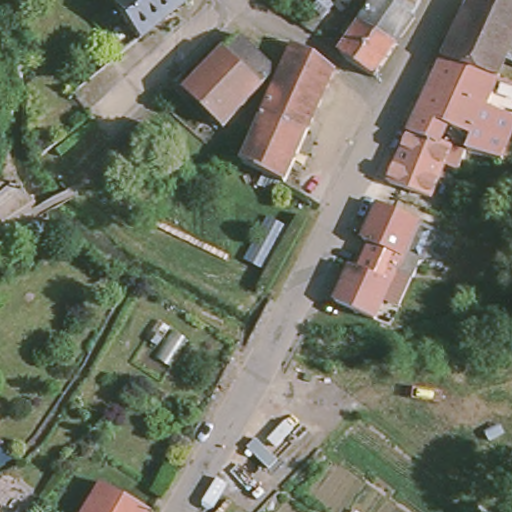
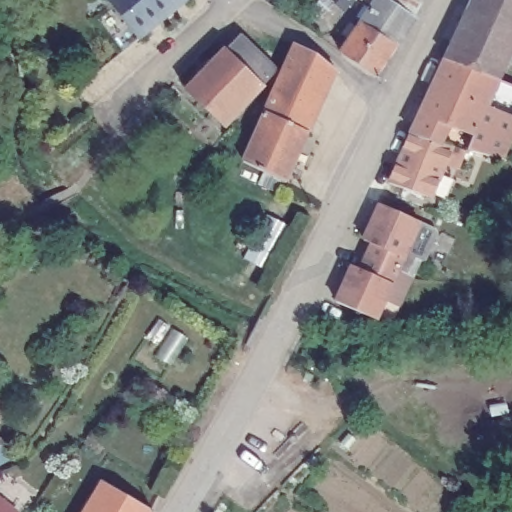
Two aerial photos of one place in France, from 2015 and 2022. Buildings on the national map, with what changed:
unchanged [(108,0),(188,0),(139,39),(108,0)]
unchanged [(339,0),(328,10),(319,1),(320,0),(339,0)]
unchanged [(345,0),(354,0),(350,4),(345,0)]
unchanged [(378,0),(424,0),(418,10),(421,13),(406,34),(370,11),(378,0)]
unchanged [(512,0),(512,65),(507,63),(500,79),(445,58),(472,0),(512,0)]
unchanged [(348,29),(355,18),(362,22),(370,11),(406,34),(381,73),(352,55),(345,47),(355,34),(348,29)]
unchanged [(245,40),(281,77),(228,132),(191,95),(243,41),(245,40)]
unchanged [(286,75),(292,68),(301,48),(324,60),(341,74),(313,138),(271,116),(286,83),(284,80),(286,75)]
unchanged [(500,79),(500,81),(512,85),(512,118),(487,109),(431,88),(445,58),(500,79)]
unchanged [(420,114),(431,88),(487,109),(476,136),(474,135),(450,126),(442,143),(453,146),(467,149),(460,169),(446,163),(432,196),(390,182),(412,133),(420,114)]
unchanged [(487,109),(512,118),(512,135),(503,158),(473,151),(468,150),(474,135),(476,136),(487,109)]
unchanged [(248,166),(271,116),(313,138),(290,186),(248,166)]
unchanged [(353,260),(361,264),(367,251),(373,238),(365,235),(381,198),(420,216),(405,252),(400,262),(398,265),(393,277),(376,314),(337,296),(353,260)]
unchanged [(8,443),(8,444),(23,456),(6,464),(0,466),(0,436),(8,443)]
unchanged [(104,480),(152,509),(150,512),(86,512),(104,480)]

